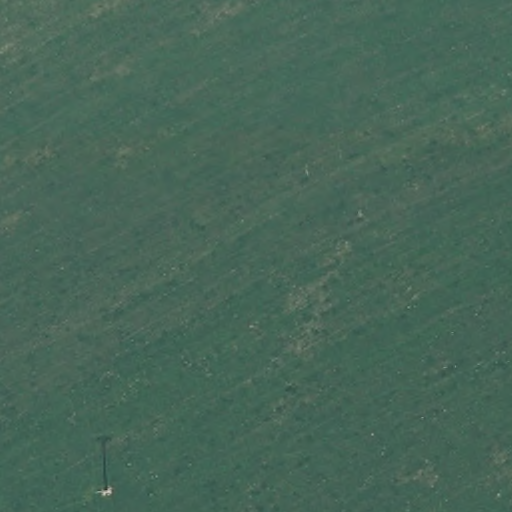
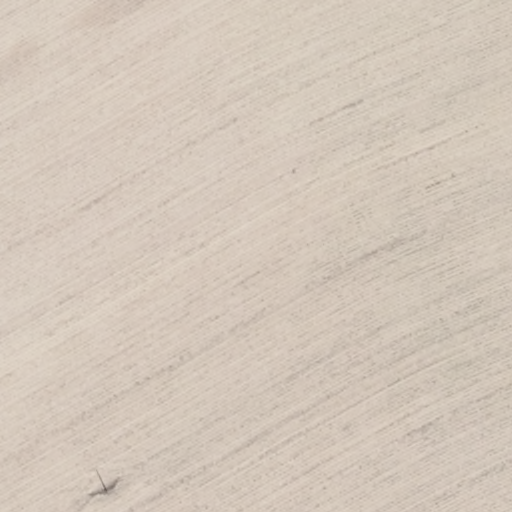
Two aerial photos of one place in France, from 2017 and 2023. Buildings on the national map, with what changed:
[]

